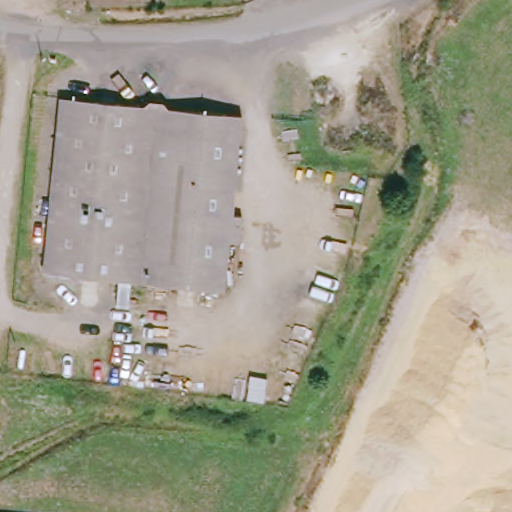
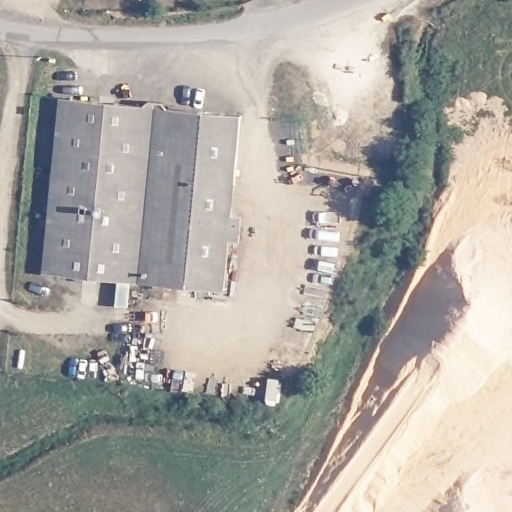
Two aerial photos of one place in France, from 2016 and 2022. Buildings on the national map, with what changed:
unchanged [(190,294),(32,277),(55,96),(135,104),(141,99),(154,100),(156,107),(213,114),(190,294)]
unchanged [(233,116),(222,216),(230,217),(228,245),(218,243),(213,297),(190,294),(213,114),(233,116)]

